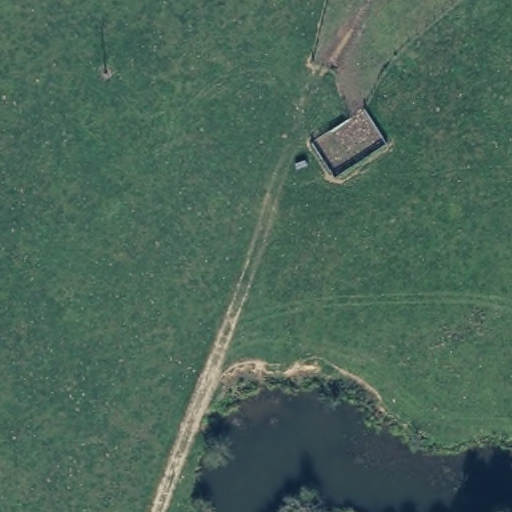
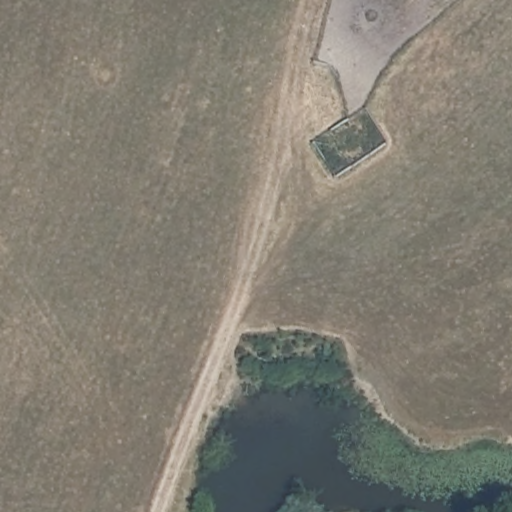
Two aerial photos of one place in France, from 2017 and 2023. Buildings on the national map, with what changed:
unchanged [(349,156),(334,132),(366,109),(382,132),(349,156)]

